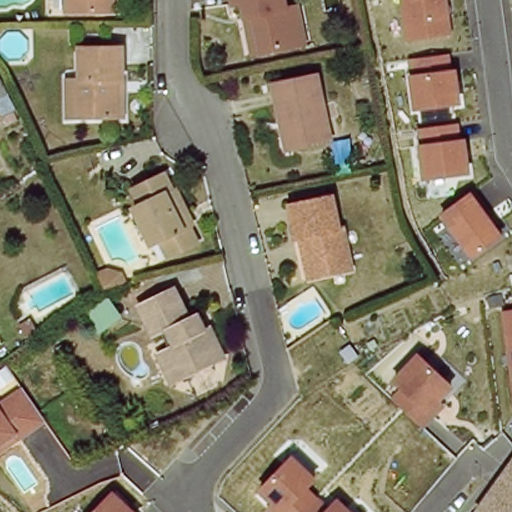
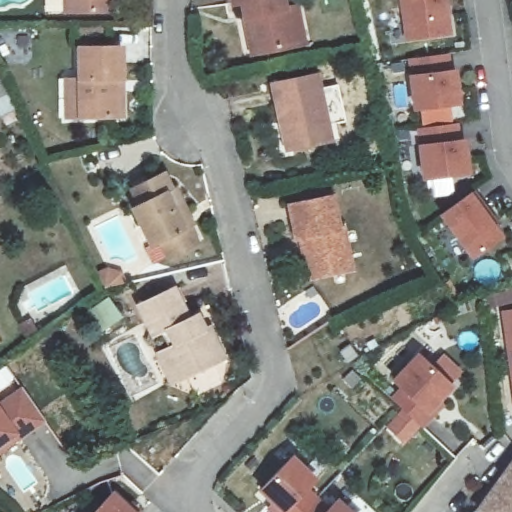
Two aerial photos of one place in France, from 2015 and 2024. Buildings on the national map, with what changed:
unchanged [(107,10),(67,10),(66,0),(107,0),(107,10)]
unchanged [(247,20),(244,4),(235,6),(233,0),(287,0),(289,10),(293,10),(300,44),(264,52),(254,54),(247,20)]
unchanged [(447,35),(409,40),(405,14),(402,14),(400,0),(441,0),(447,35)]
unchanged [(123,48),(125,78),(120,79),(120,91),(124,91),(126,115),(70,117),(68,81),(80,80),(79,50),(123,48)]
unchanged [(413,112),(408,75),(410,75),(408,60),(450,54),(452,69),(456,69),(460,105),(413,112)]
unchanged [(330,139),(287,148),(282,124),(278,125),(269,83),(315,74),(330,139)]
unchanged [(0,103),(0,95),(3,101),(0,103)]
unchanged [(422,180),(417,144),(419,144),(416,130),(458,125),(460,139),(466,138),(470,174),(422,180)]
unchanged [(168,173),(176,188),(174,189),(181,203),(178,205),(190,228),(195,226),(202,241),(172,256),(164,241),(155,246),(136,209),(143,205),(134,190),(168,173)]
unchanged [(502,236),(472,259),(440,215),(470,192),(502,236)]
unchanged [(298,238),(294,239),(287,205),(332,195),(338,228),(343,227),(352,268),(314,276),(307,278),(298,238)]
unchanged [(160,364),(167,360),(164,353),(175,348),(166,330),(152,337),(137,306),(173,288),(189,317),(197,313),(205,330),(210,327),(225,355),(214,361),(186,375),(170,383),(160,364)]
unchanged [(499,311),(512,310),(512,403),(499,311)]
unchanged [(389,396),(398,384),(393,378),(418,354),(454,388),(439,403),(444,408),(422,429),(389,396)]
unchanged [(16,435),(0,446),(0,402),(23,389),(46,423),(19,439),(16,435)]
unchanged [(307,487),(329,508),(338,499),(351,512),(268,512),(266,510),(271,504),(259,493),(291,456),(316,478),(307,487)]
unchanged [(492,512),(484,501),(512,466),(512,512),(492,512)]
unchanged [(137,512),(95,512),(115,490),(137,512)]

